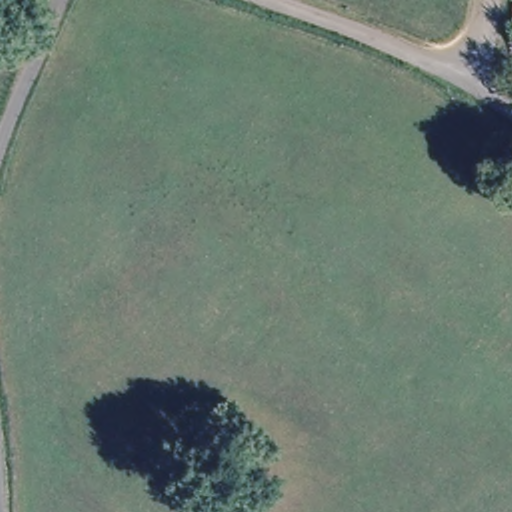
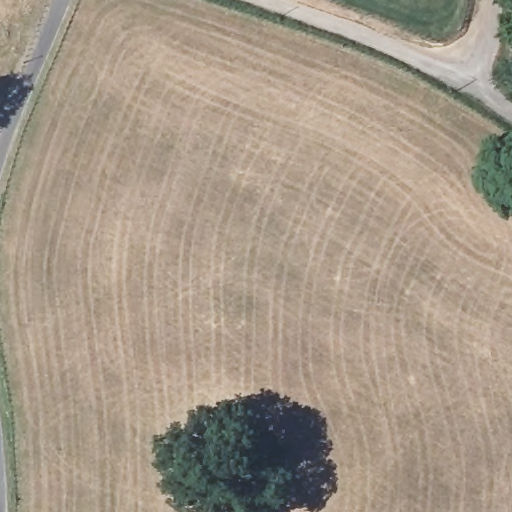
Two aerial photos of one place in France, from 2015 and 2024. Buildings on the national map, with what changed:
[]

